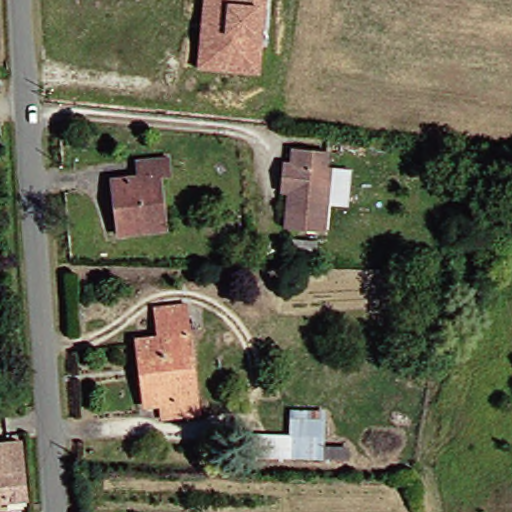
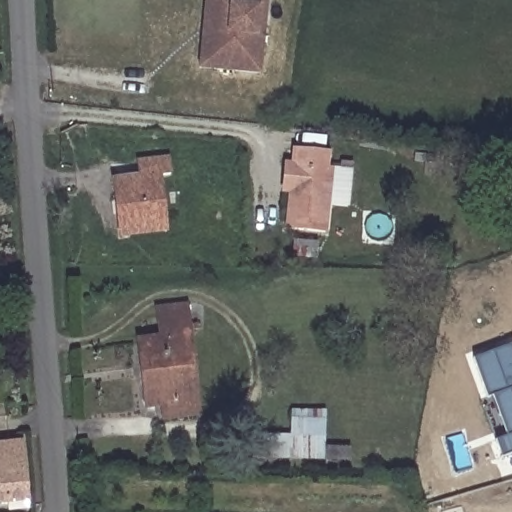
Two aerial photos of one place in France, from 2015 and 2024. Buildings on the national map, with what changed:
unchanged [(209,0),(270,0),(266,34),(262,71),(216,66),(202,65),(206,20),(209,0)]
unchanged [(334,149),(329,228),(289,224),(291,189),(282,189),(284,161),(293,163),(294,146),(334,149)]
unchanged [(163,175),(170,229),(124,236),(116,180),(140,179),(139,163),(169,160),(170,174),(163,175)]
unchanged [(333,166),(353,168),(350,208),(331,206),(333,166)]
unchanged [(162,362),(147,362),(146,339),(167,339),(165,309),(195,308),(199,398),(200,414),(164,415),(163,399),(162,362)]
new [(496,442),(506,438),(477,359),(512,345),(512,456),(503,459),(496,442)]
unchanged [(293,409),(328,409),(329,456),(255,454),(255,434),(292,434),(293,409)]
unchanged [(28,497),(0,499),(0,445),(24,443),(28,497)]

